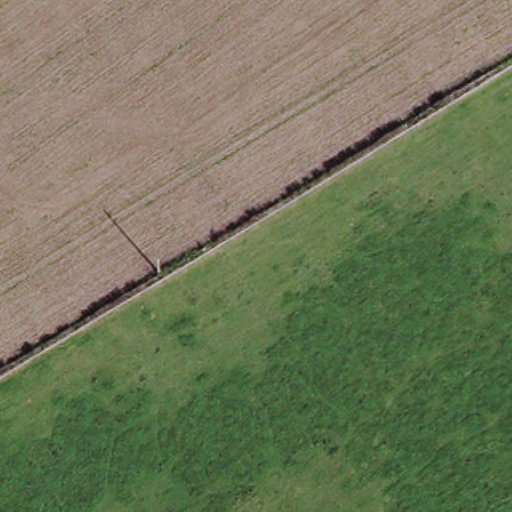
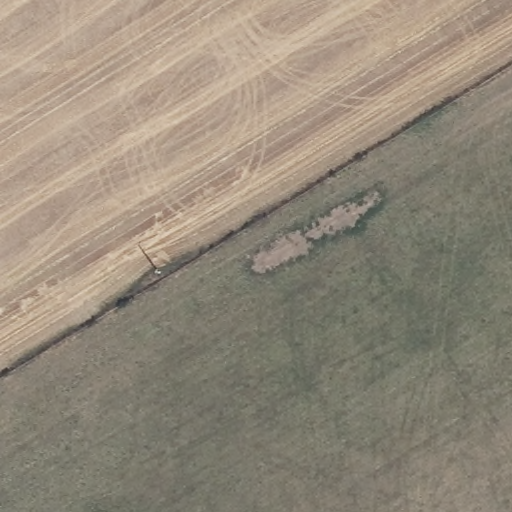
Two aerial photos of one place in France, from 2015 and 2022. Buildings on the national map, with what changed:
[]

